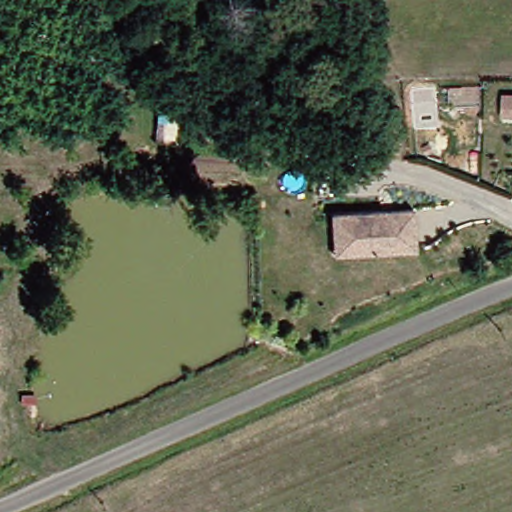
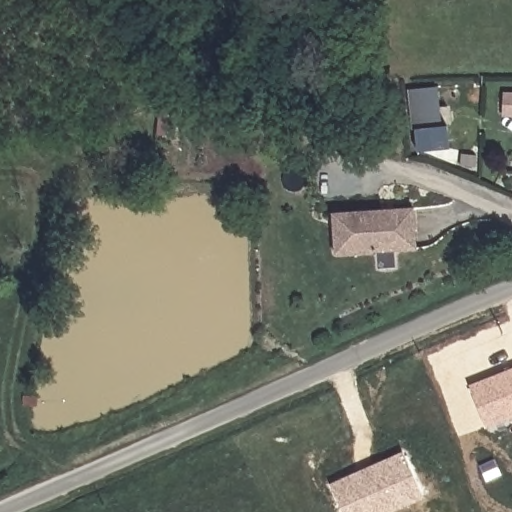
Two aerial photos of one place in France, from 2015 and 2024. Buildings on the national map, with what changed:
new [(437,87),(442,127),(411,130),(407,90),(437,87)]
unchanged [(511,109),(511,90),(512,90),(512,110),(511,109)]
unchanged [(336,230),(335,211),(416,207),(419,247),(357,251),(337,252),(336,230)]
new [(468,384),(512,367),(512,419),(486,429),(468,384)]
new [(402,451),(423,500),(395,512),(342,512),(330,483),(402,451)]

